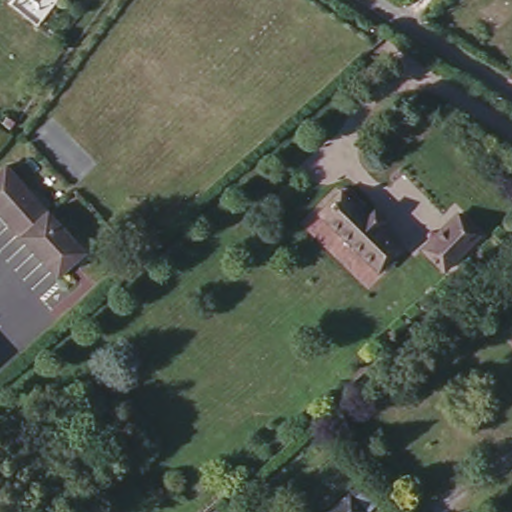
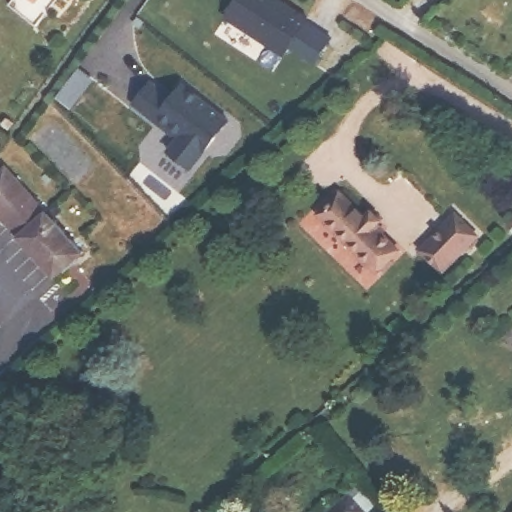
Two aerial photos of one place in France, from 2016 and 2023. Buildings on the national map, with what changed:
unchanged [(12,4),(15,0),(60,0),(40,25),(12,4)]
new [(284,0),(313,21),(285,59),(226,17),(238,0),(284,0)]
new [(153,83),(173,99),(181,89),(229,130),(190,170),(168,153),(178,140),(135,105),(153,83)]
unchanged [(14,122),(9,129),(1,122),(6,116),(14,122)]
unchanged [(47,207),(21,233),(0,209),(0,175),(10,166),(47,207)]
unchanged [(365,215),(372,210),(381,218),(375,225),(398,248),(377,270),(318,212),(339,190),(365,215)]
unchanged [(47,207),(87,252),(59,276),(21,233),(47,207)]
unchanged [(420,251),(431,240),(455,215),(477,236),(452,261),(441,272),(420,251)]
unchanged [(346,496),(360,512),(328,512),(346,496)]

